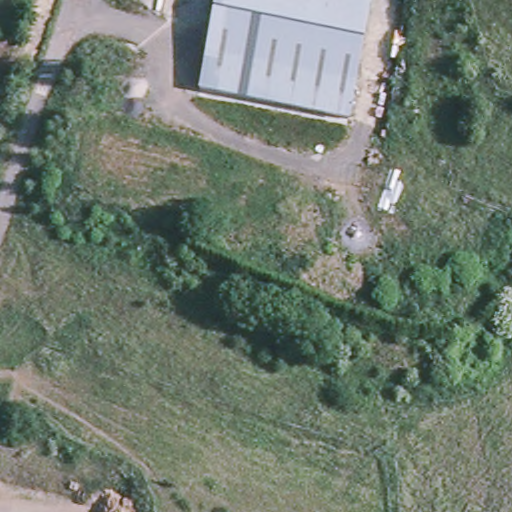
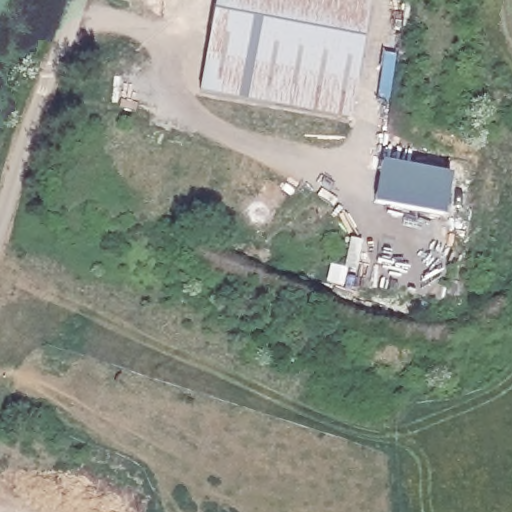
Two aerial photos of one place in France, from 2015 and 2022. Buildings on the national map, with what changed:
unchanged [(197,91),(213,0),(365,0),(346,118),(197,91)]
new [(381,159),(451,172),(445,216),(374,202),(381,159)]

